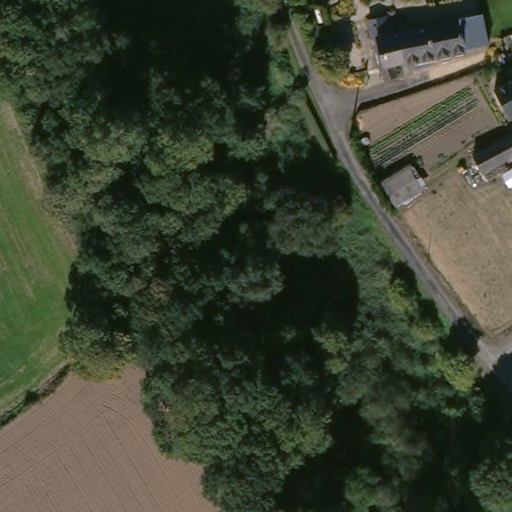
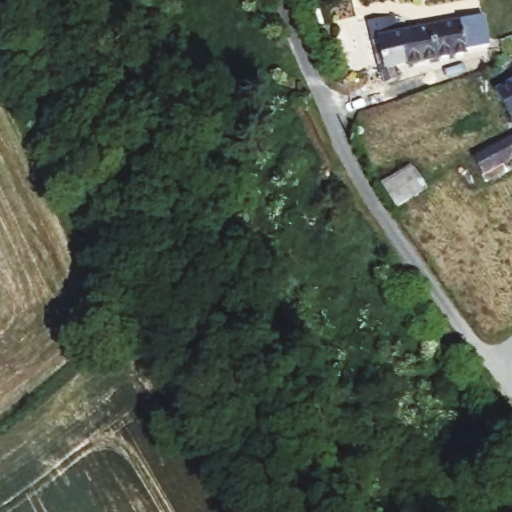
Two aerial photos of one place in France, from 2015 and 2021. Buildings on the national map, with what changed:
unchanged [(488,53),(461,57),(400,67),(397,67),(399,83),(384,85),(376,26),(401,23),(403,32),(483,22),(487,47),(488,53)]
unchanged [(508,80),(512,78),(512,88),(508,80)]
unchanged [(489,182),(483,172),(478,164),(512,142),(512,167),(489,182)]

